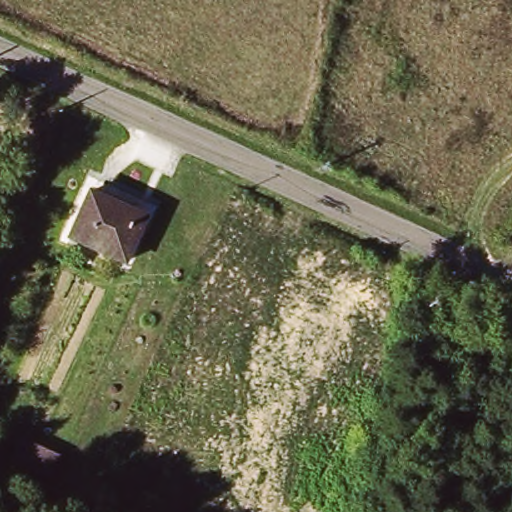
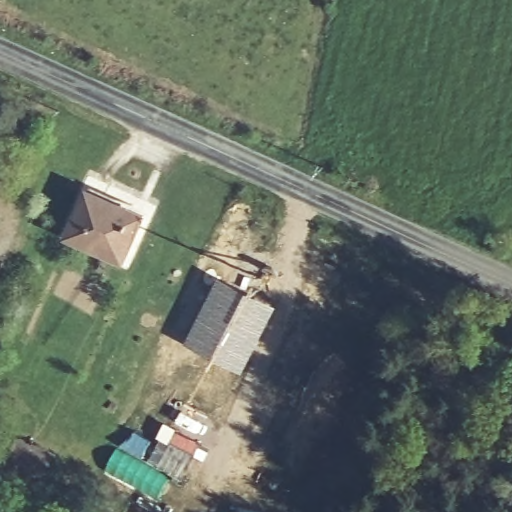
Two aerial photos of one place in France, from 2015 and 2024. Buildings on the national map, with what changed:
unchanged [(71,241),(90,196),(144,219),(125,264),(71,241)]
new [(217,277),(277,305),(243,373),(183,344),(217,277)]
unchanged [(89,425),(81,443),(46,428),(54,409),(89,425)]

